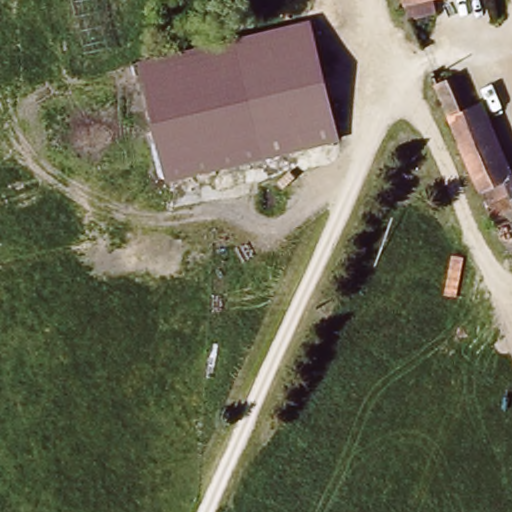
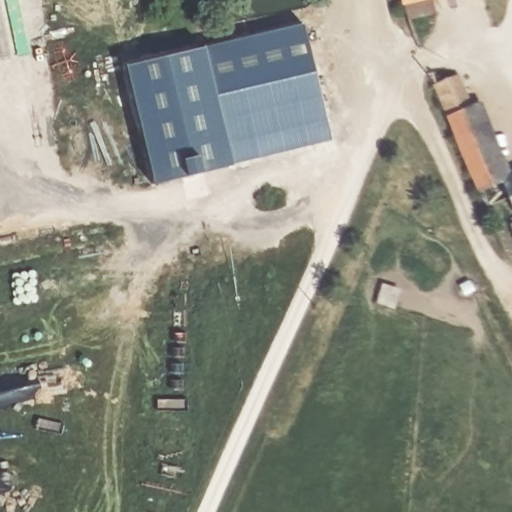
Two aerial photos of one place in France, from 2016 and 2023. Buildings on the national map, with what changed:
unchanged [(402,0),(428,0),(403,6),(402,0)]
unchanged [(330,141),(165,178),(138,57),(302,20),(330,141)]
unchanged [(467,100),(478,96),(505,170),(498,173),(466,184),(440,108),(467,100)]
unchanged [(505,194),(498,173),(505,170),(512,167),(512,212),(511,213),(480,224),(473,205),(505,194)]
unchanged [(512,212),(512,215),(511,213),(512,212)]

